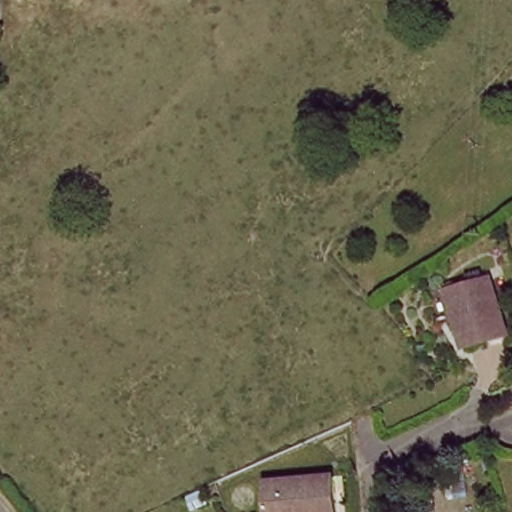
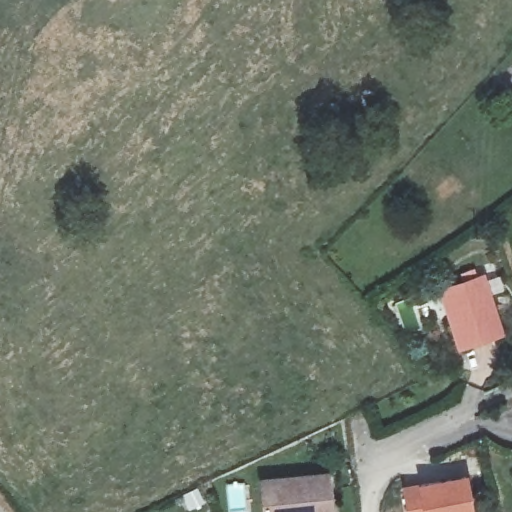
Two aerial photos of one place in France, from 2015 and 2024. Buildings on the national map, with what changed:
unchanged [(483,280),(502,337),(461,351),(442,293),(483,280)]
new [(472,512),(408,512),(404,487),(466,477),(472,512)]
unchanged [(329,478),(330,512),(263,512),(262,479),(329,478)]

